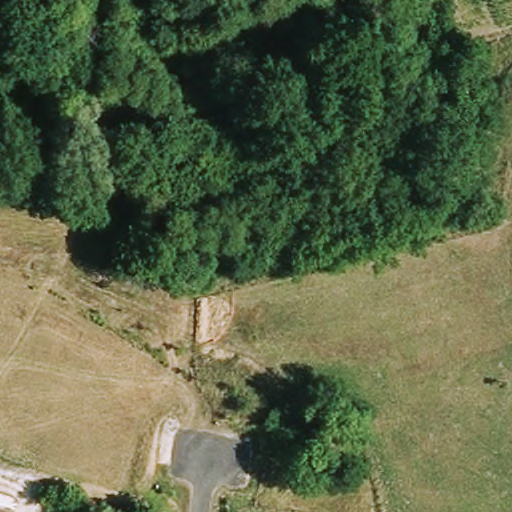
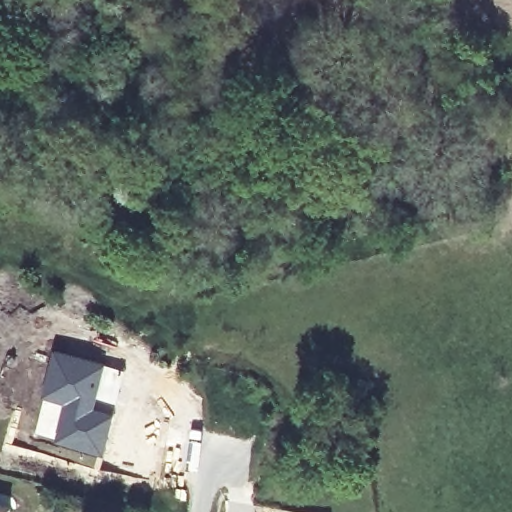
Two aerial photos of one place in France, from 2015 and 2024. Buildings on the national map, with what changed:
new [(53,348),(108,363),(96,405),(116,412),(103,457),(53,442),(32,435),(42,397),(53,348)]
unchanged [(0,505),(13,509),(13,512),(0,512),(0,505)]

